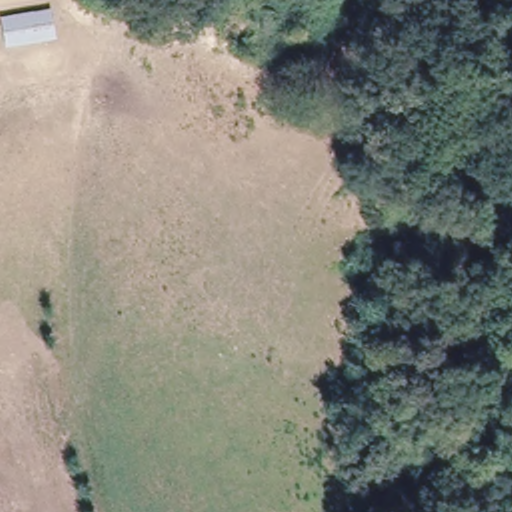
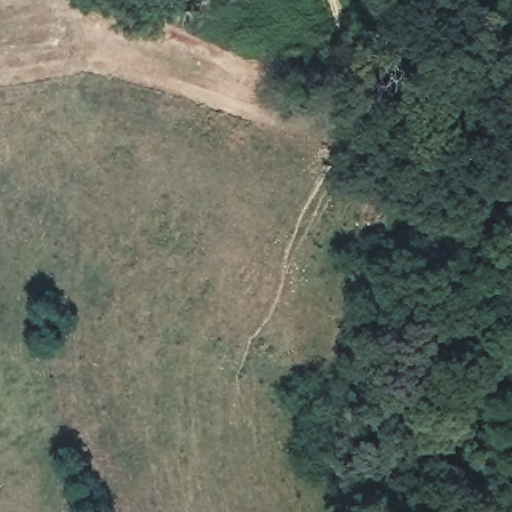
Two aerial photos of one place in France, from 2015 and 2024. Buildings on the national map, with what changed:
demolished [(0,29),(0,18),(49,10),(55,40),(4,50),(0,29)]

